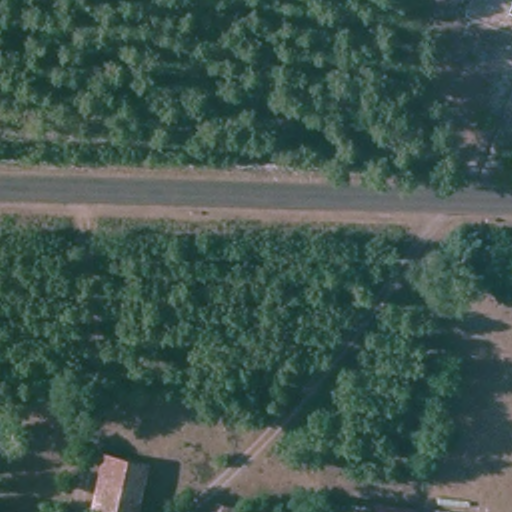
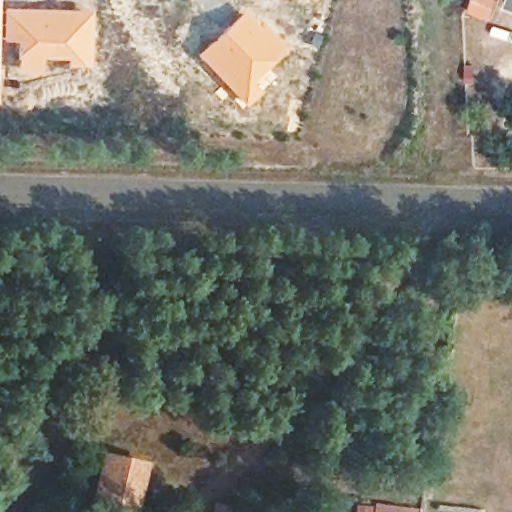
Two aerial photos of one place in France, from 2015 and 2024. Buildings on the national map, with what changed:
new [(89,66),(66,66),(66,60),(40,59),(40,75),(17,74),(18,42),(2,41),(3,9),(90,11),(89,66)]
new [(244,11),(260,28),(264,25),(288,50),(253,82),(262,92),(245,108),(197,56),(244,11)]
unchanged [(139,468),(130,512),(93,512),(104,461),(139,468)]
unchanged [(217,512),(208,512),(209,510),(217,512)]

